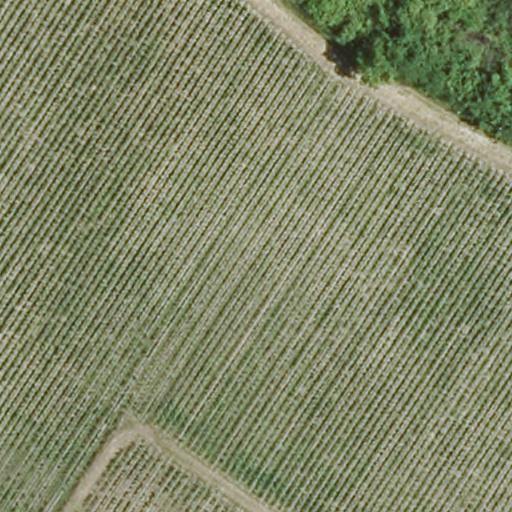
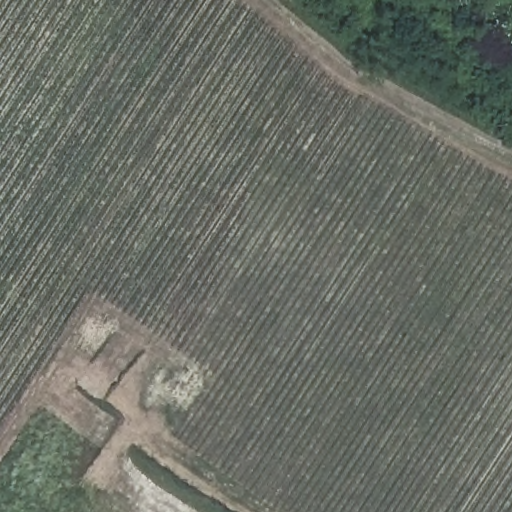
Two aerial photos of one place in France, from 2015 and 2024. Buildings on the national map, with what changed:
[]

